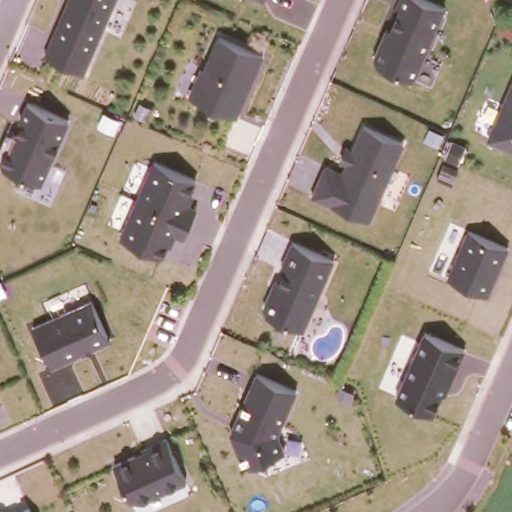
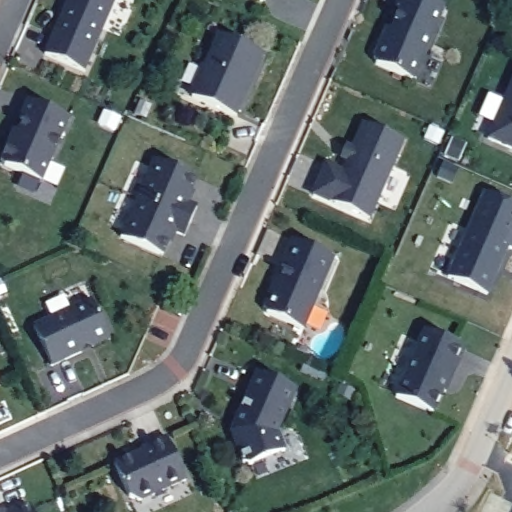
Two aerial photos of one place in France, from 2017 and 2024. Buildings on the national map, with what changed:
unchanged [(43,54),(66,0),(115,0),(84,72),(43,54)]
unchanged [(411,84),(369,65),(395,0),(432,0),(446,6),(411,84)]
unchanged [(264,54),(236,116),(187,95),(199,64),(204,66),(219,33),(264,54)]
unchanged [(485,140),(512,76),(512,151),(485,140)]
unchanged [(70,119),(45,181),(3,161),(28,102),(70,119)]
unchanged [(406,139),(371,221),(333,206),(334,204),(309,194),(324,162),(339,170),(344,161),(339,158),(344,143),(352,146),(361,122),(406,139)]
unchanged [(201,180),(191,201),(197,204),(182,238),(174,234),(163,257),(117,235),(153,156),(201,180)]
new [(482,193),(512,206),(512,250),(509,249),(510,245),(469,223),(482,193)]
unchanged [(510,245),(488,296),(445,275),(469,223),(510,245)]
unchanged [(336,257),(303,331),(259,308),(291,235),(336,257)]
unchanged [(110,338),(50,366),(30,325),(91,297),(110,338)]
unchanged [(466,348),(437,416),(395,396),(423,331),(466,348)]
unchanged [(297,388),(278,432),(284,450),(243,465),(228,427),(253,375),(297,388)]
unchanged [(186,479),(142,500),(127,496),(113,461),(141,448),(139,445),(165,432),(186,479)]
unchanged [(28,504),(31,512),(10,512),(28,504)]
unchanged [(0,512),(3,510),(5,512),(0,512)]

